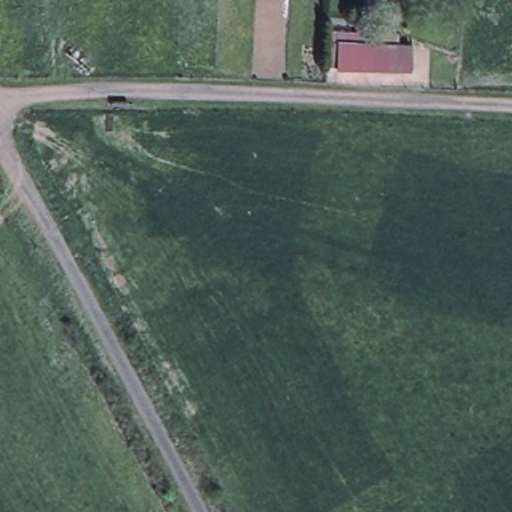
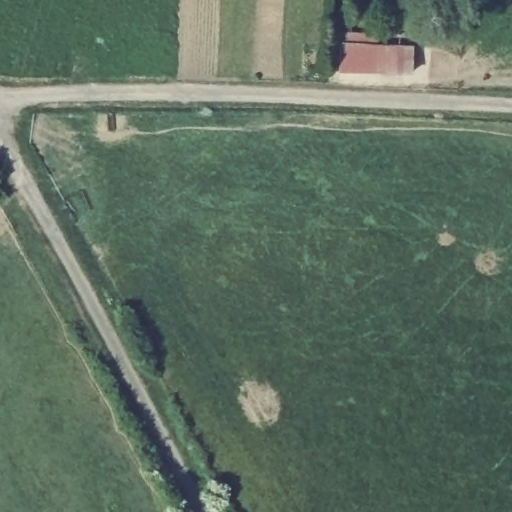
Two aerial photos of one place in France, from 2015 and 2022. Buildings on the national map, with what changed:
unchanged [(405,75),(339,71),(340,43),(339,34),(376,35),(377,43),(405,45),(405,75)]

